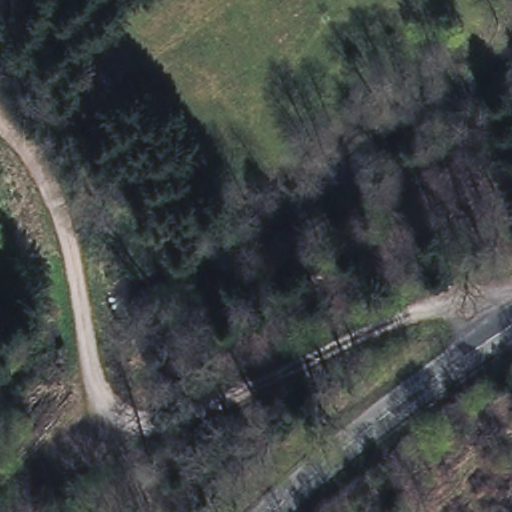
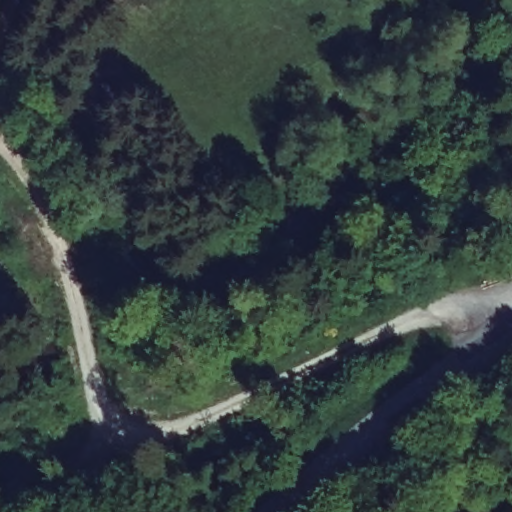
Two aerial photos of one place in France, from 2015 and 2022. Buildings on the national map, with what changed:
[]

